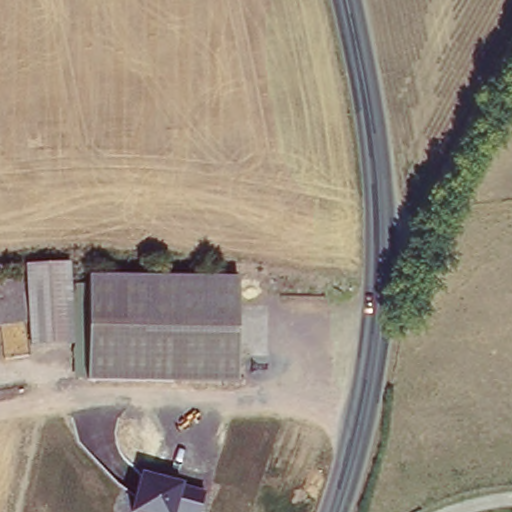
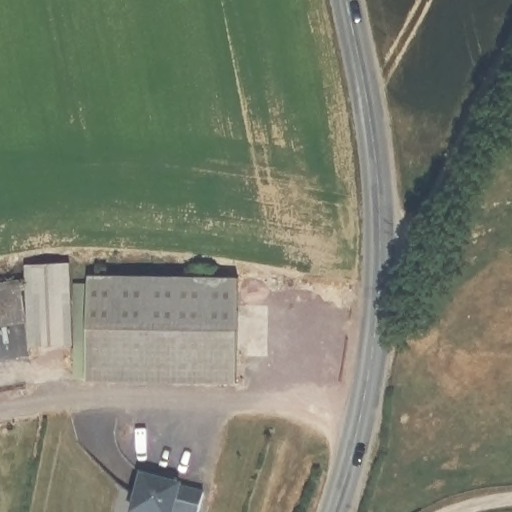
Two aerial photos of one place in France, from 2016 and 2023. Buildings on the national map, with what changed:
unchanged [(74,259),(80,346),(33,348),(28,263),(74,259)]
unchanged [(91,265),(242,277),(237,380),(85,370),(91,265)]
unchanged [(24,280),(28,325),(0,328),(0,282),(24,280)]
unchanged [(184,483),(183,487),(206,493),(201,512),(130,512),(140,473),(184,483)]

